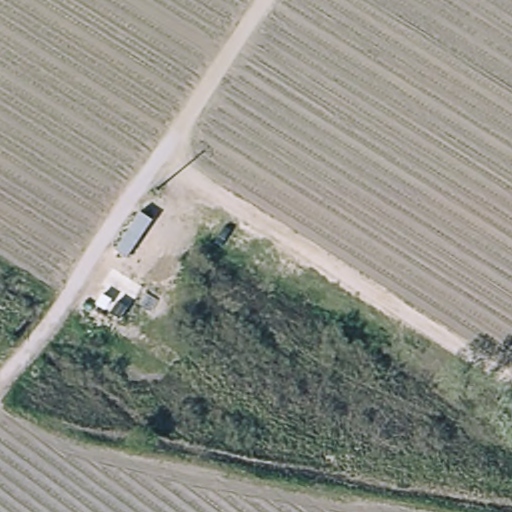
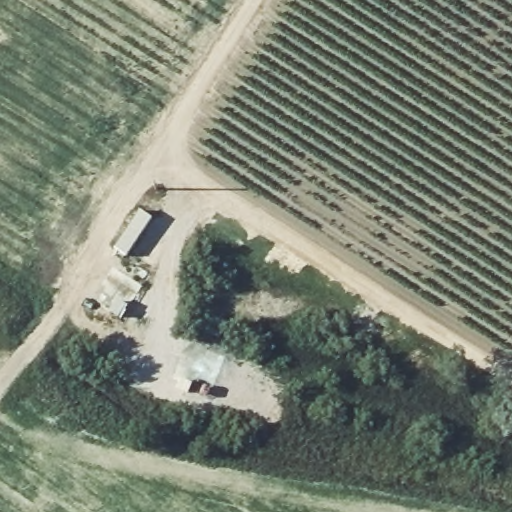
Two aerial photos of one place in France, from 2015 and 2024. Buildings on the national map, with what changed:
unchanged [(151,219),(126,257),(114,250),(139,212),(151,219)]

